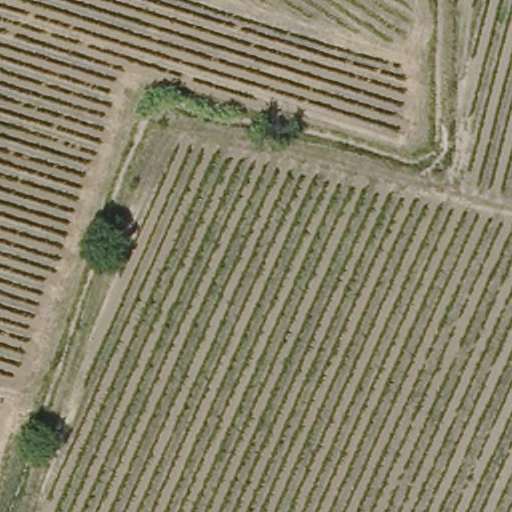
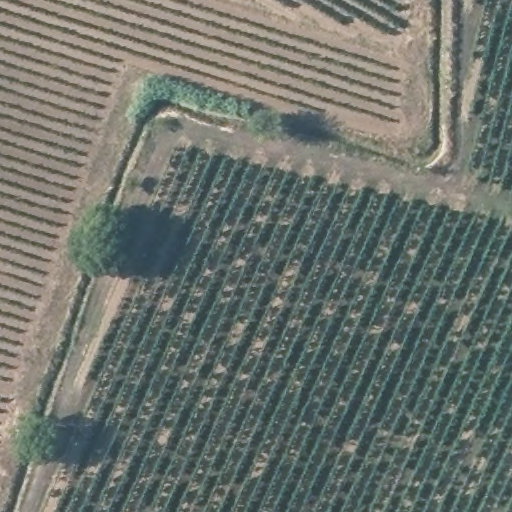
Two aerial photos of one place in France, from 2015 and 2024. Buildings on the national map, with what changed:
[]

